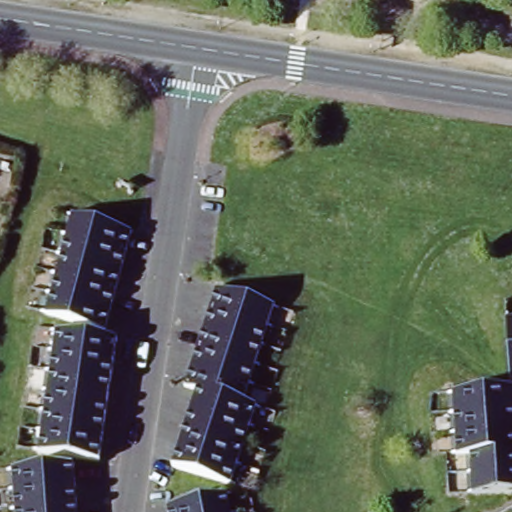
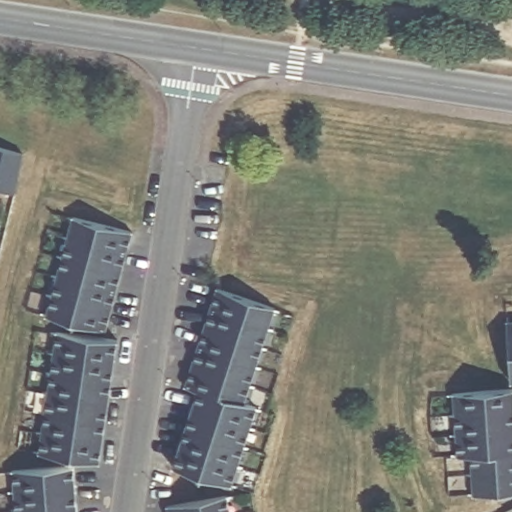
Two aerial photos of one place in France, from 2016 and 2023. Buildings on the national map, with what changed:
new [(17,192),(0,187),(0,147),(28,155),(17,192)]
unchanged [(125,236),(99,332),(43,318),(69,221),(125,236)]
unchanged [(269,312),(239,408),(251,412),(228,488),(173,470),(197,394),(183,390),(213,295),(269,312)]
unchanged [(509,322),(512,322),(512,368),(509,322)]
unchanged [(98,464),(38,455),(58,336),(116,343),(98,464)]
unchanged [(469,496),(468,455),(454,455),(451,395),(512,392),(512,494),(469,496)]
unchanged [(70,467),(72,512),(15,512),(13,471),(70,467)]
unchanged [(228,502),(230,512),(172,512),(171,512),(228,502)]

